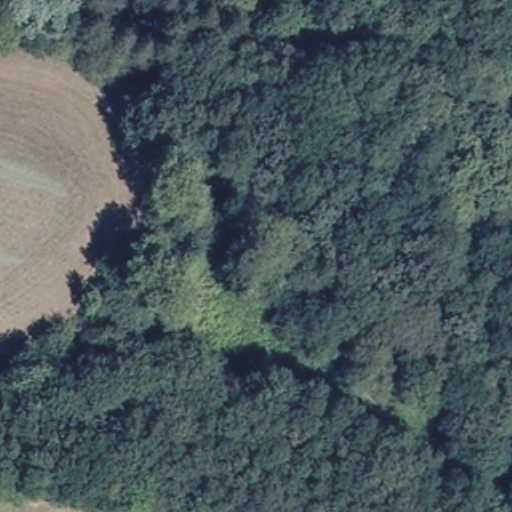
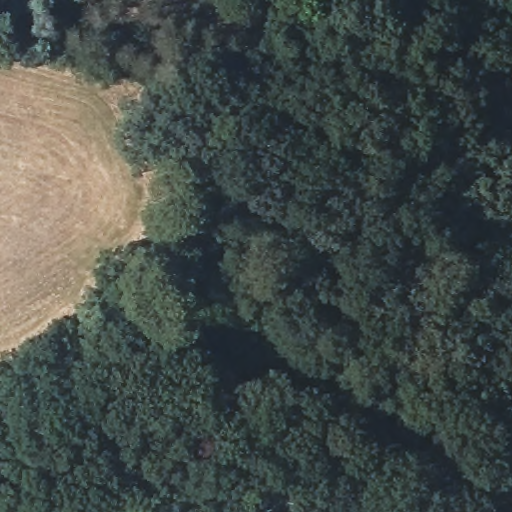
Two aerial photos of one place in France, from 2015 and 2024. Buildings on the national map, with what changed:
unchanged [(249,381),(229,400),(209,380),(227,360),(249,381)]

